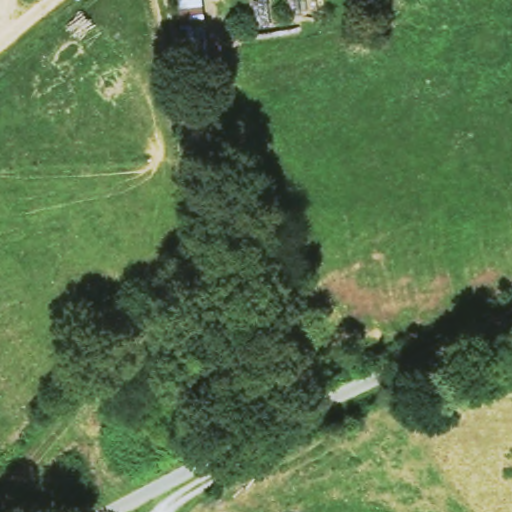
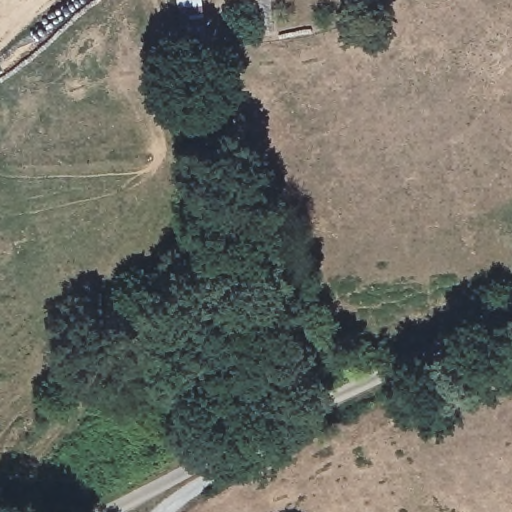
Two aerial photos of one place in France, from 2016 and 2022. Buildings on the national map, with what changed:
unchanged [(217,79),(194,83),(187,35),(180,36),(174,0),(206,0),(212,40),(217,79)]

